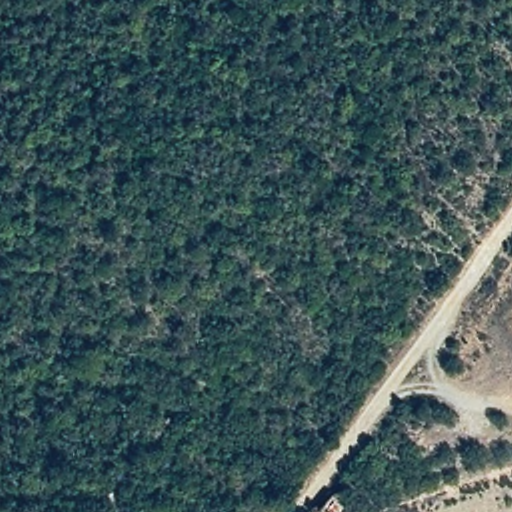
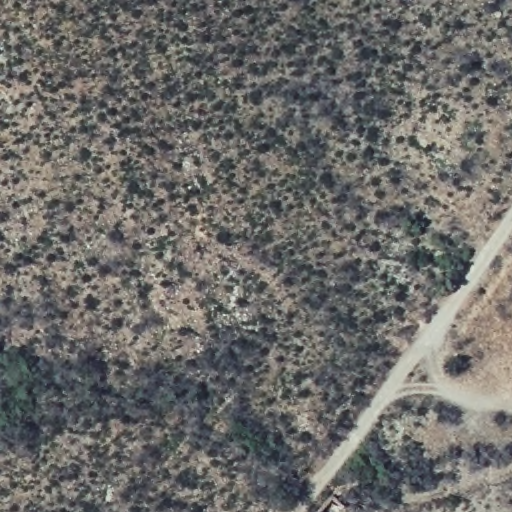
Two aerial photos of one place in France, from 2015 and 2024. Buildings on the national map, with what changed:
unchanged [(331,512),(315,512),(310,508),(328,489),(340,501),(331,512)]

